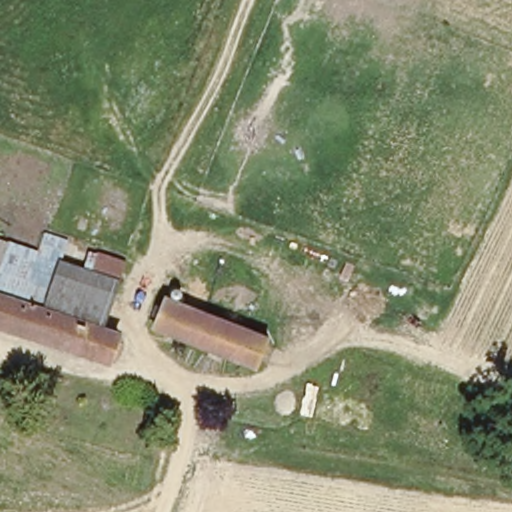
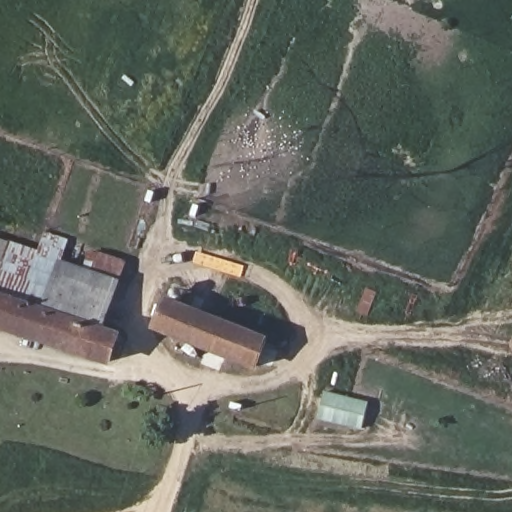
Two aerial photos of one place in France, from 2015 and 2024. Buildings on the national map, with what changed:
unchanged [(0,245),(39,256),(45,234),(69,243),(65,265),(111,278),(96,327),(117,332),(109,361),(0,329),(0,245)]
unchanged [(149,330),(155,300),(267,332),(261,359),(149,330)]
new [(362,430),(318,420),(324,392),(368,403),(362,430)]

